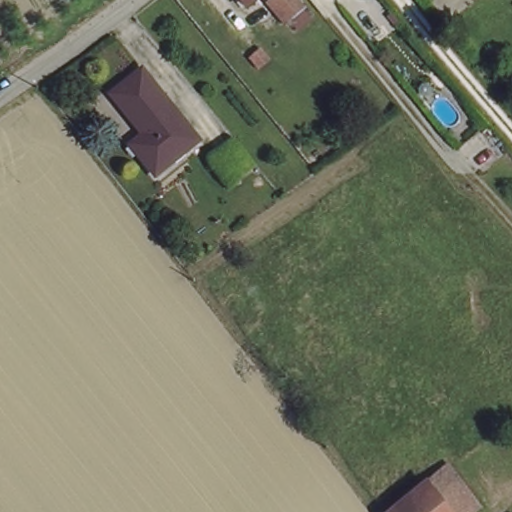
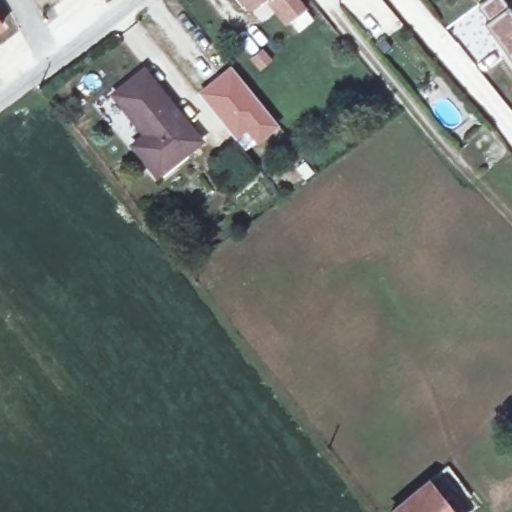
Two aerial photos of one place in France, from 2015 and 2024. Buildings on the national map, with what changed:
unchanged [(240,0),(261,0),(249,10),(240,0)]
unchanged [(286,27),(262,0),(296,0),(305,11),(286,27)]
new [(512,13),(512,62),(485,25),(508,8),(512,13)]
new [(4,23),(0,26),(0,19),(4,23)]
new [(231,64),(281,126),(245,151),(198,92),(231,64)]
unchanged [(138,132),(109,94),(137,74),(190,140),(148,174),(133,154),(124,143),(138,132)]
unchanged [(240,168),(222,181),(206,159),(224,145),(240,168)]
unchanged [(444,471),(476,512),(446,512),(426,485),(444,471)]
unchanged [(446,512),(393,512),(426,485),(446,512)]

